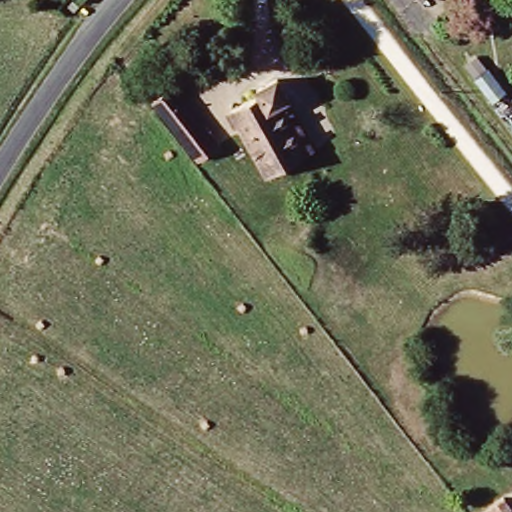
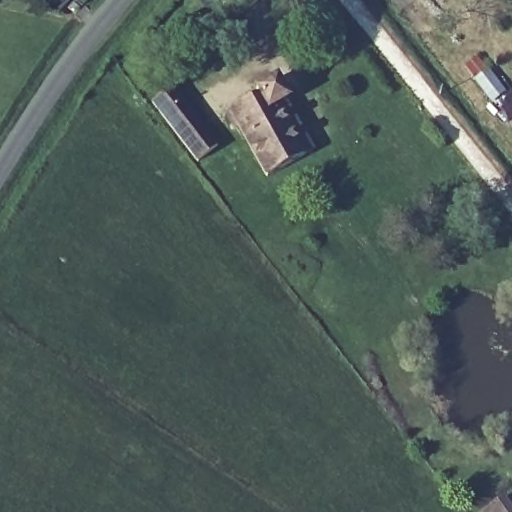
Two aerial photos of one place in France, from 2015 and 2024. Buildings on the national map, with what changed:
unchanged [(420,0),(422,0),(421,1),(420,0)]
unchanged [(269,182),(234,116),(262,101),(260,96),(283,84),(321,154),(269,182)]
unchanged [(222,147),(199,166),(152,105),(175,87),(222,147)]
unchanged [(511,512),(471,512),(470,511),(496,491),(511,512)]

